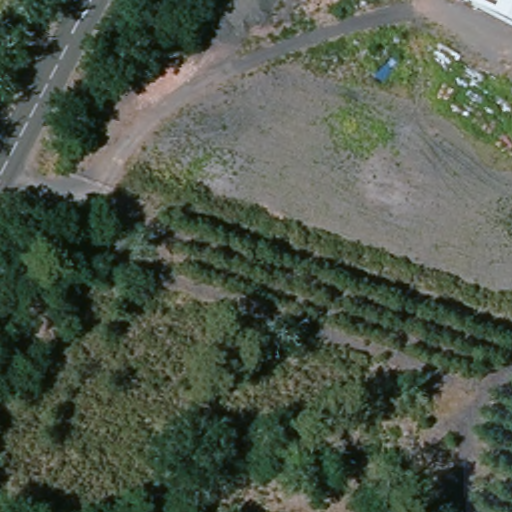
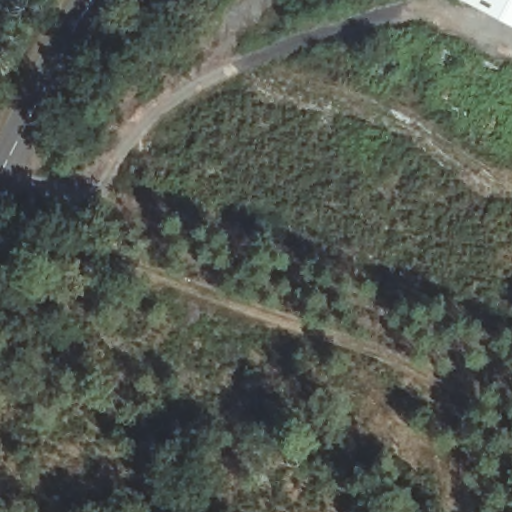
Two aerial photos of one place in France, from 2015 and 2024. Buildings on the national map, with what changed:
unchanged [(469,0),(512,0),(512,23),(469,0)]

